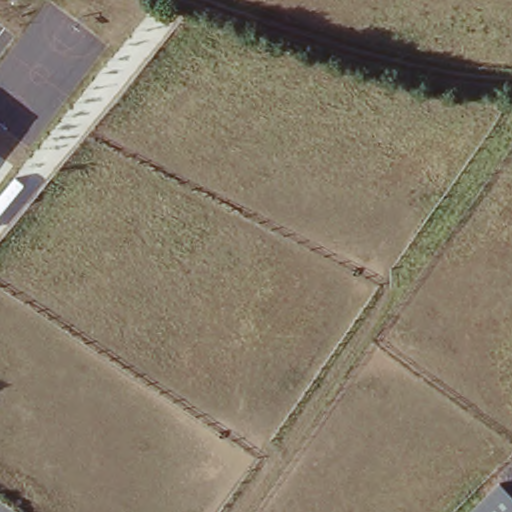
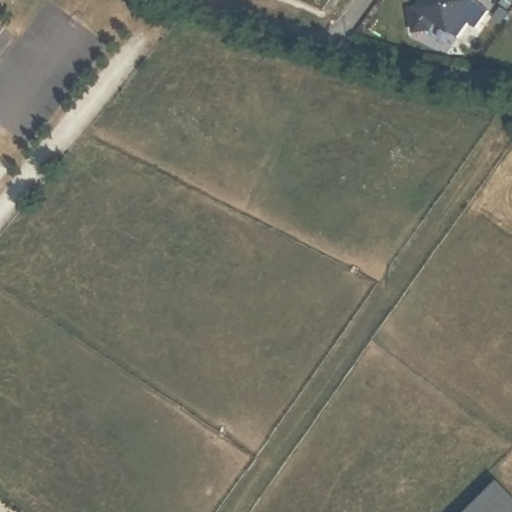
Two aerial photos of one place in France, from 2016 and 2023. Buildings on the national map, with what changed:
new [(484,11),(474,28),(466,22),(456,36),(434,24),(431,29),(412,31),(409,10),(422,5),(425,0),(472,0),(484,11)]
unchanged [(512,495),(512,512),(464,512),(496,480),(512,495)]

